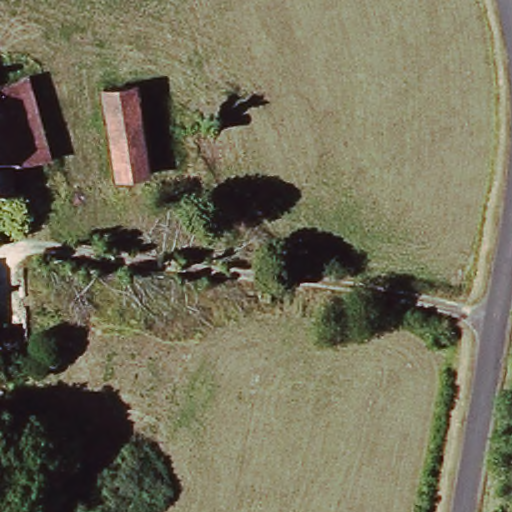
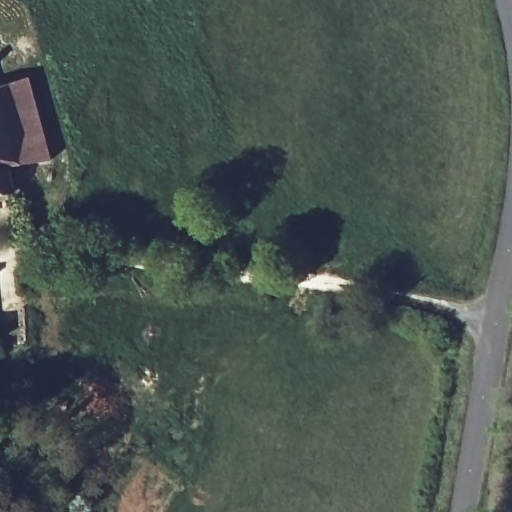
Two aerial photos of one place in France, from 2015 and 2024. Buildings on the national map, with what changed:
unchanged [(27,79),(52,154),(5,169),(10,195),(0,197),(0,86),(27,79)]
demolished [(132,89),(150,174),(115,181),(98,95),(132,89)]

